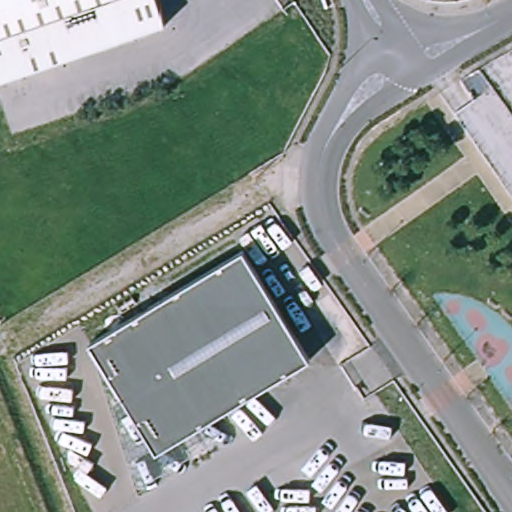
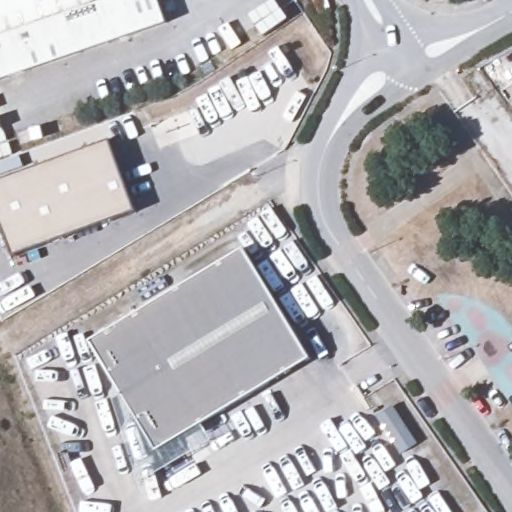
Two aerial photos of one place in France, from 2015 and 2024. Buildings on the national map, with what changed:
unchanged [(56,66),(0,86),(0,0),(156,0),(165,27),(56,66)]
new [(106,140),(133,212),(10,258),(0,232),(0,179),(106,140)]
unchanged [(311,359),(156,452),(90,341),(245,248),(311,359)]

